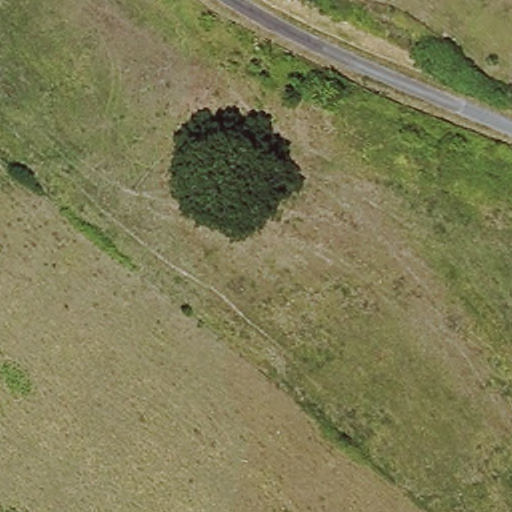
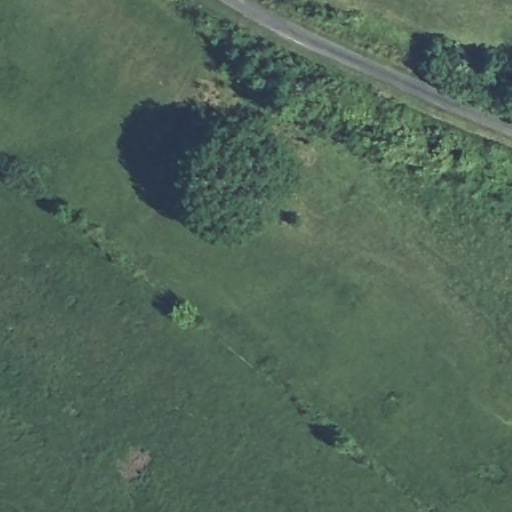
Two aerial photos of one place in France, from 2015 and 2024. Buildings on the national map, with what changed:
[]

